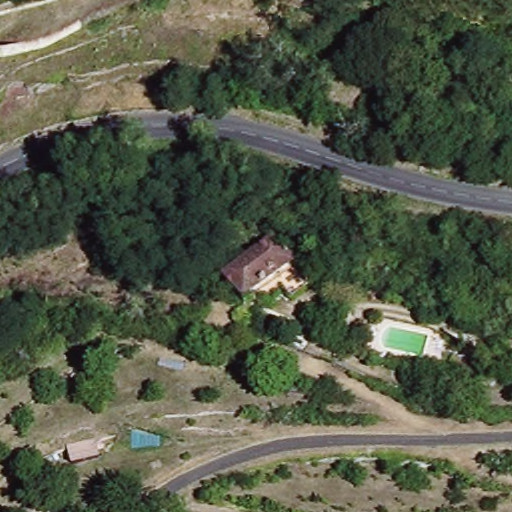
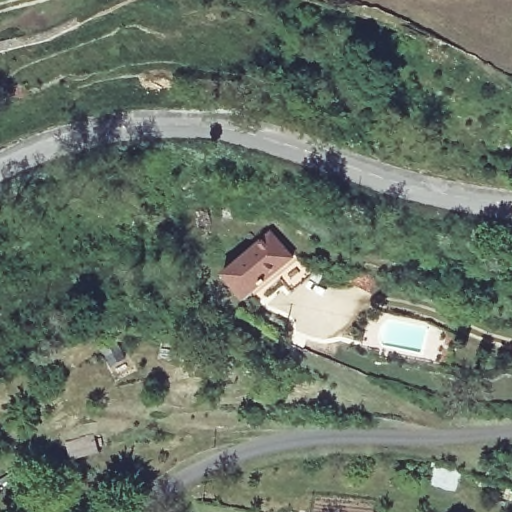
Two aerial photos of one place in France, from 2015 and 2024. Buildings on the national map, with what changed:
unchanged [(233,272),(278,229),(317,267),(299,286),(283,268),(255,296),(233,272)]
unchanged [(72,462),(70,445),(96,441),(99,457),(72,462)]

